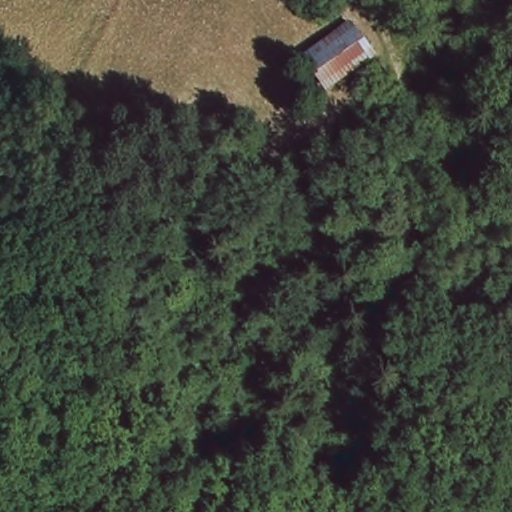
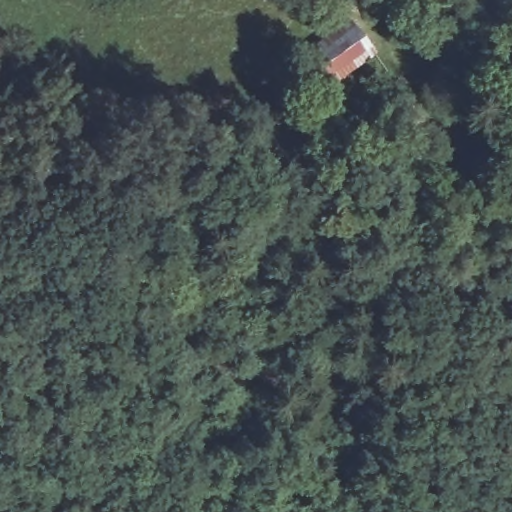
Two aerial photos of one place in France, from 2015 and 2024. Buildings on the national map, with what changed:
unchanged [(353,26),(368,61),(316,84),(304,53),(302,47),(353,26)]

